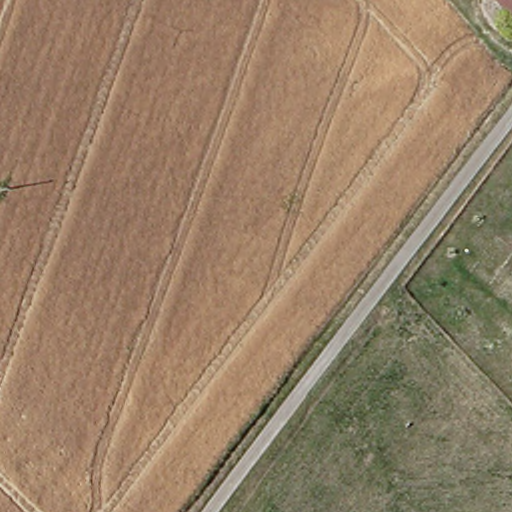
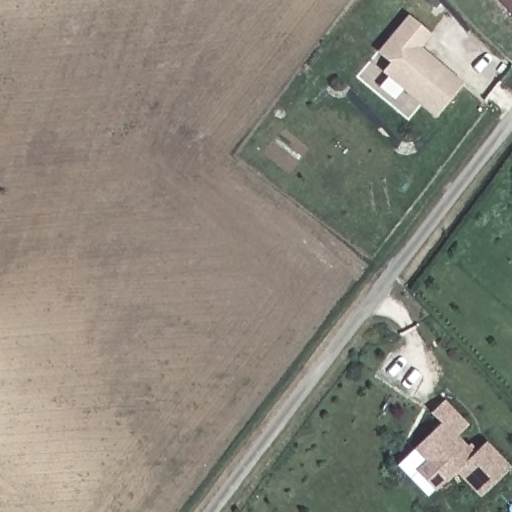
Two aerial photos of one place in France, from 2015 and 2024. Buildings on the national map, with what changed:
unchanged [(512,0),(512,2),(510,0),(512,0)]
new [(393,72),(401,63),(389,52),(419,17),(439,35),(428,49),(471,86),(444,117),(393,72)]
new [(469,425),(456,436),(466,446),(469,443),(477,448),(485,441),(510,467),(479,497),(454,472),(434,492),(414,471),(424,462),(413,448),(440,423),(431,413),(444,399),(469,425)]

